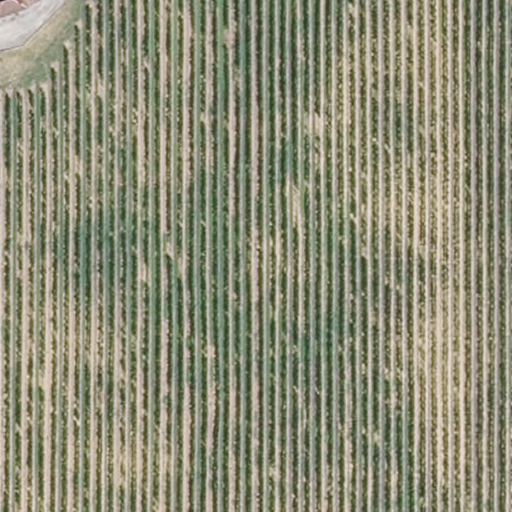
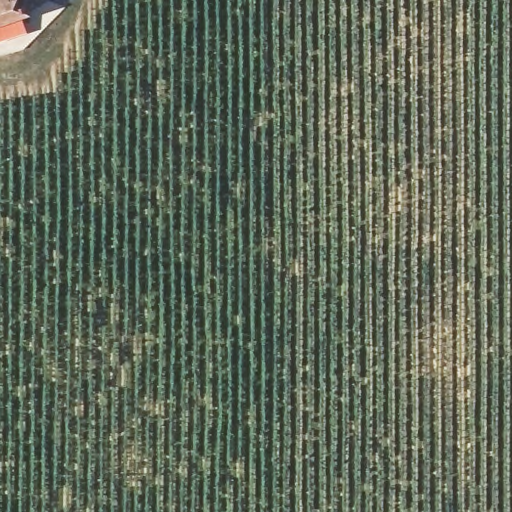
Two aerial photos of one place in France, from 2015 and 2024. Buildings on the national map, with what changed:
unchanged [(20,15),(0,21),(0,0),(36,0),(36,1),(19,7),(20,15)]

